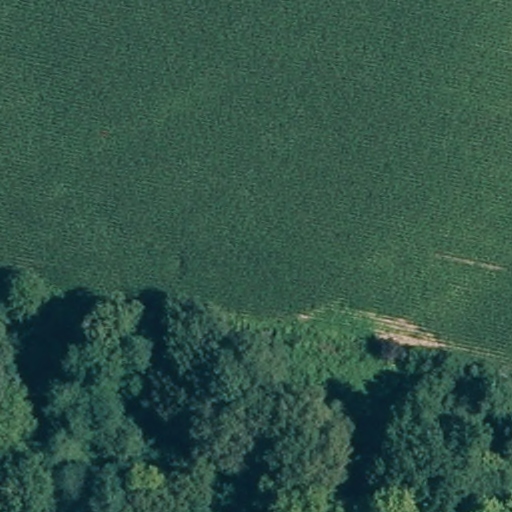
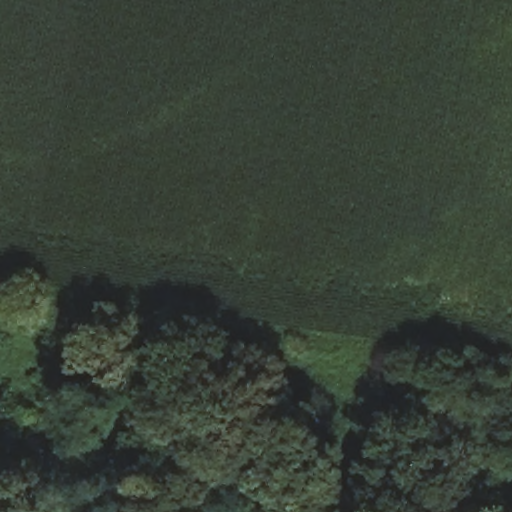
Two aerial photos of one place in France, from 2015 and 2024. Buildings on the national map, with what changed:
[]

